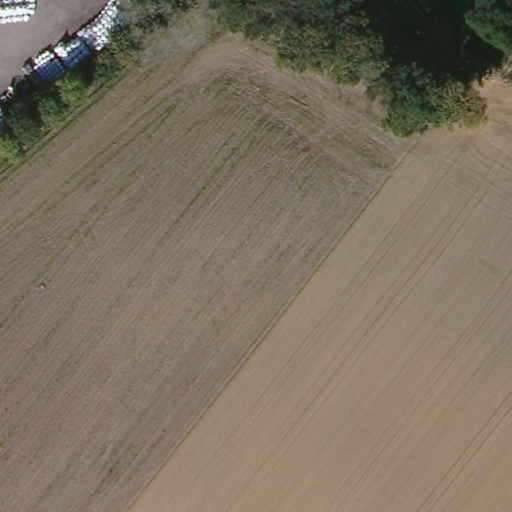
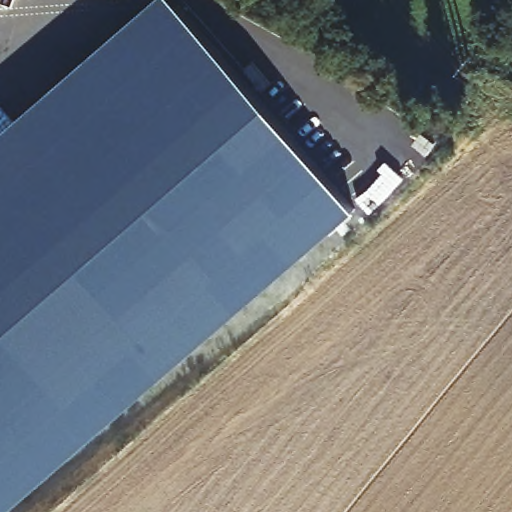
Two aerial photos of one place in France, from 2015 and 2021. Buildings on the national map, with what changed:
new [(157,0),(176,0),(358,209),(8,512),(0,512),(0,136),(157,0)]

